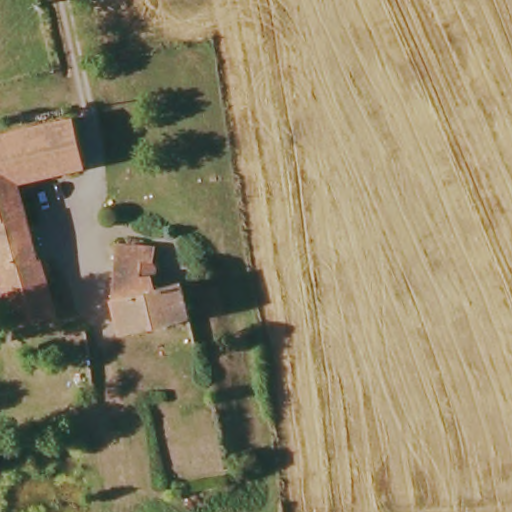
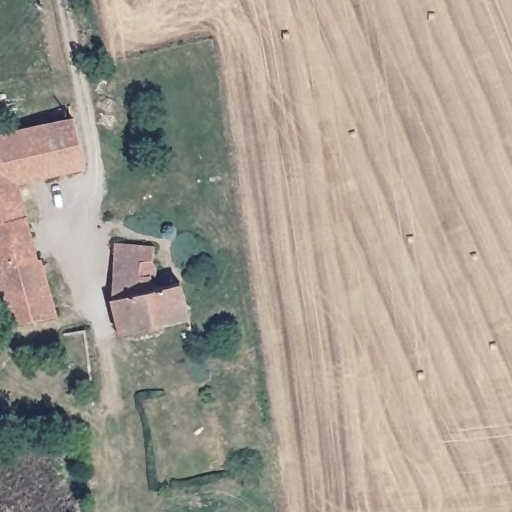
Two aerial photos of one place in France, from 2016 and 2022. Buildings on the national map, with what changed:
unchanged [(79,167),(14,185),(45,317),(2,327),(0,321),(0,135),(67,119),(79,167)]
unchanged [(184,317),(111,336),(104,306),(110,252),(146,251),(146,283),(150,291),(177,285),(184,317)]

